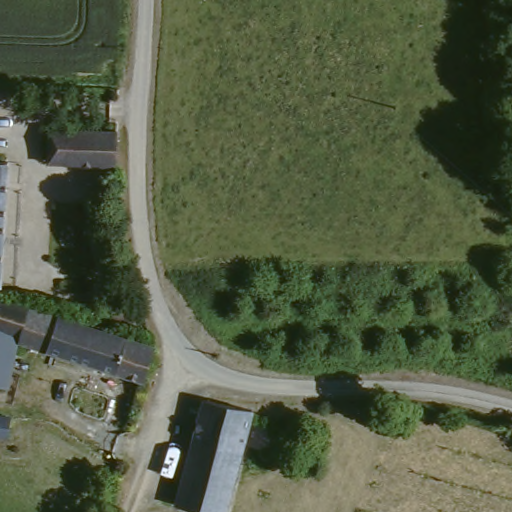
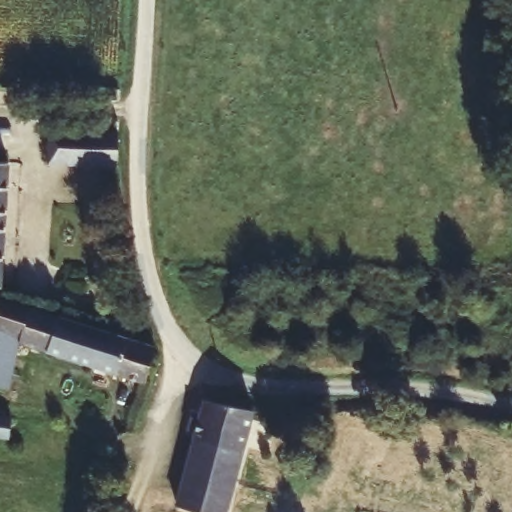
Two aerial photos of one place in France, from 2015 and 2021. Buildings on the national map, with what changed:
unchanged [(44,165),(46,130),(116,133),(115,170),(44,165)]
unchanged [(4,164),(0,228),(0,164),(4,164)]
unchanged [(0,389),(0,301),(1,298),(7,300),(59,317),(109,333),(150,346),(156,350),(143,381),(21,342),(11,369),(6,390),(0,389)]
unchanged [(250,421),(240,460),(191,443),(201,406),(250,421)]
unchanged [(15,423),(10,443),(0,442),(0,420),(15,423)]
unchanged [(227,512),(178,512),(177,511),(191,443),(240,460),(227,512)]

